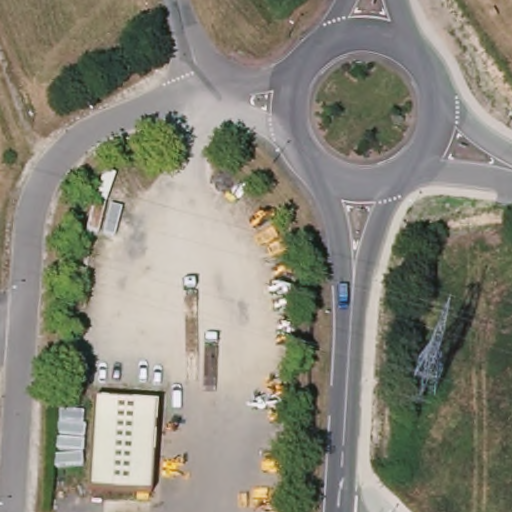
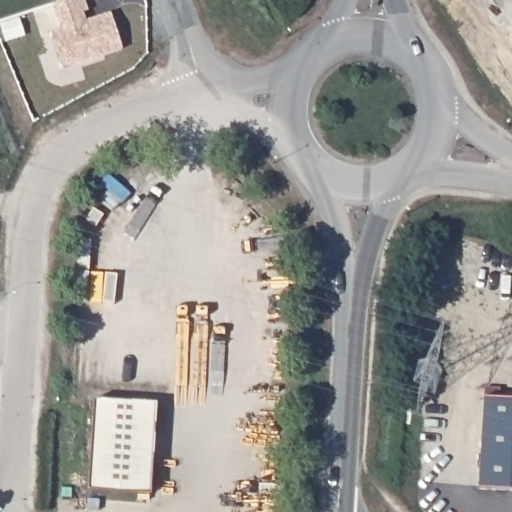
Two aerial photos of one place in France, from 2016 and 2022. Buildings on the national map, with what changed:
new [(83,13),(86,19),(111,13),(122,49),(61,67),(49,32),(58,29),(51,4),(66,0),(85,0),(88,11),(83,13)]
unchanged [(157,492),(93,489),(98,397),(161,401),(157,492)]
new [(512,400),(512,490),(478,488),(484,399),(512,400)]

